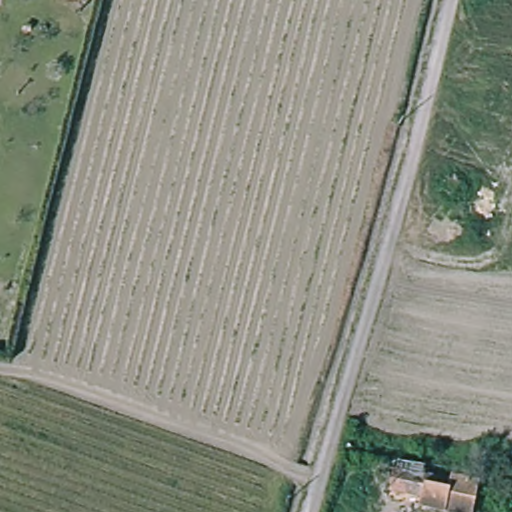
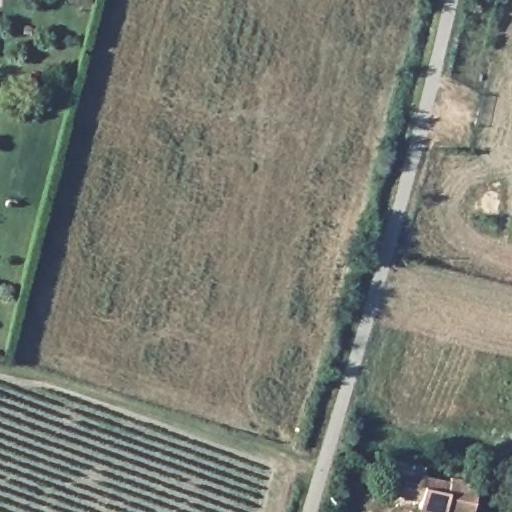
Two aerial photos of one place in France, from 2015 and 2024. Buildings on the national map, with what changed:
unchanged [(463,512),(409,502),(411,495),(385,490),(391,465),(447,475),(447,472),(474,478),(469,512),(463,512)]

